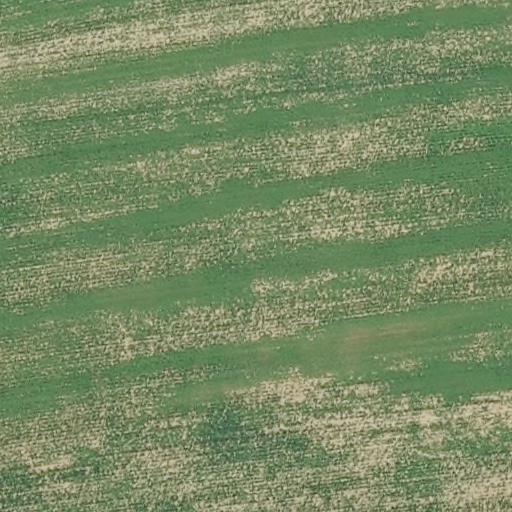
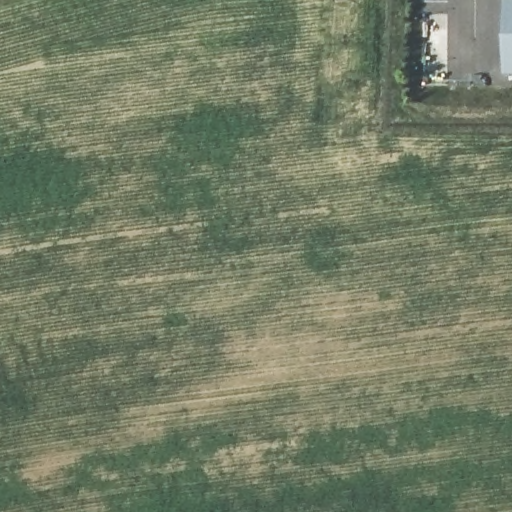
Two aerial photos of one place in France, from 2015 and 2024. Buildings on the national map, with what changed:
new [(512,72),(500,72),(499,0),(512,0),(512,72)]

